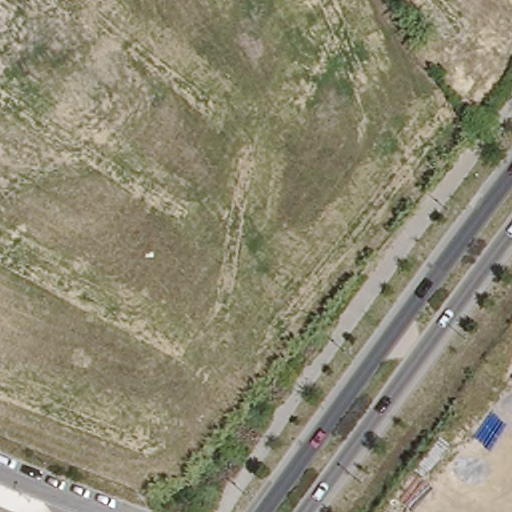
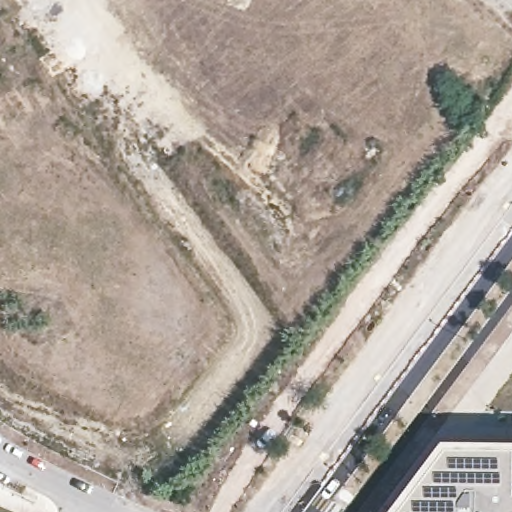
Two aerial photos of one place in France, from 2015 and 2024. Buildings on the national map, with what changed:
demolished [(43,3),(32,10),(0,30),(0,0),(41,0),(43,3)]
new [(409,512),(456,452),(512,453),(512,512),(409,512)]

